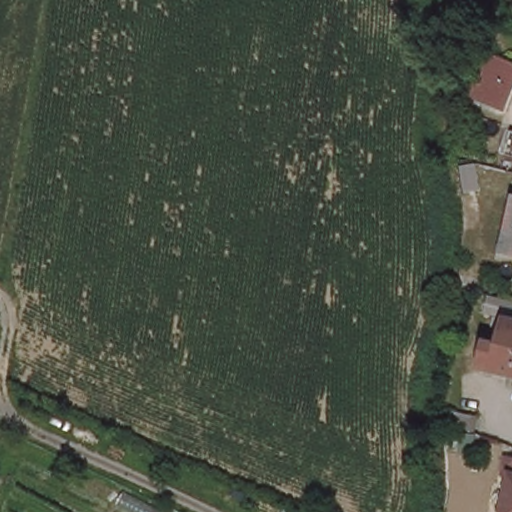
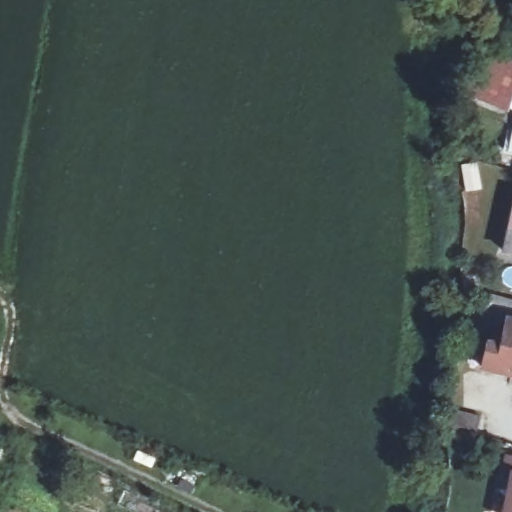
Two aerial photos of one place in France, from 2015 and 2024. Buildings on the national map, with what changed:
unchanged [(502,112),(469,97),(486,53),(512,64),(512,86),(502,112)]
unchanged [(512,212),(512,254),(503,252),(512,212)]
unchanged [(490,314),(493,300),(512,304),(512,321),(490,314)]
unchanged [(511,323),(512,324),(512,379),(488,373),(493,350),(504,352),(511,323)]
unchanged [(448,429),(449,426),(452,412),(479,419),(476,432),(475,436),(448,429)]
unchanged [(507,477),(511,460),(512,460),(512,478),(507,477)]
unchanged [(512,487),(512,512),(506,512),(512,487)]

